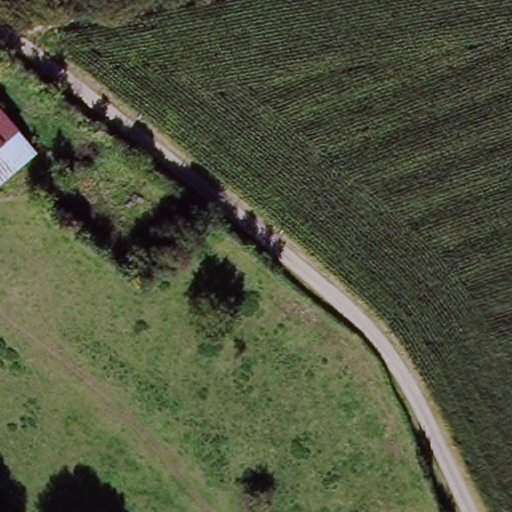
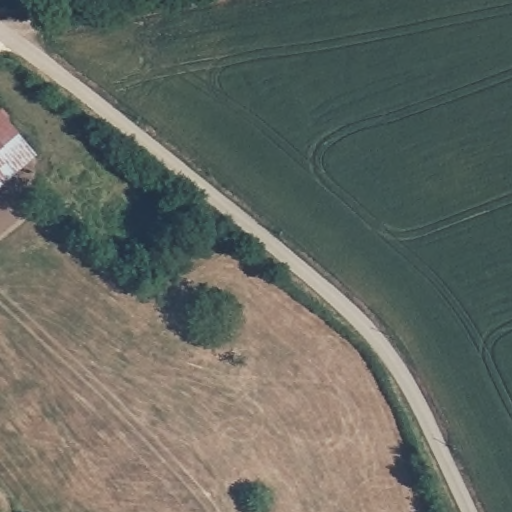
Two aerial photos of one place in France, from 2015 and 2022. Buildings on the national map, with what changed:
unchanged [(0,115),(33,149),(0,181),(0,115)]

